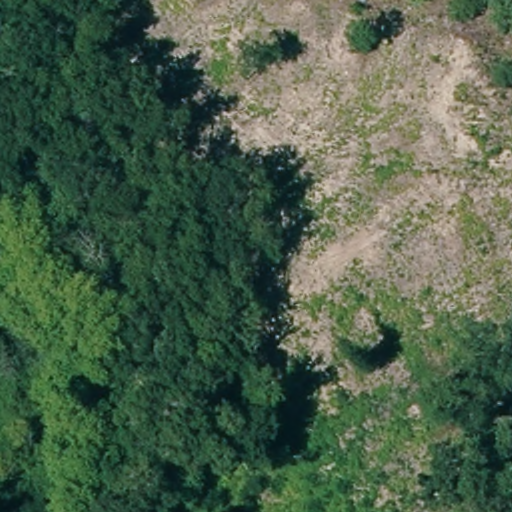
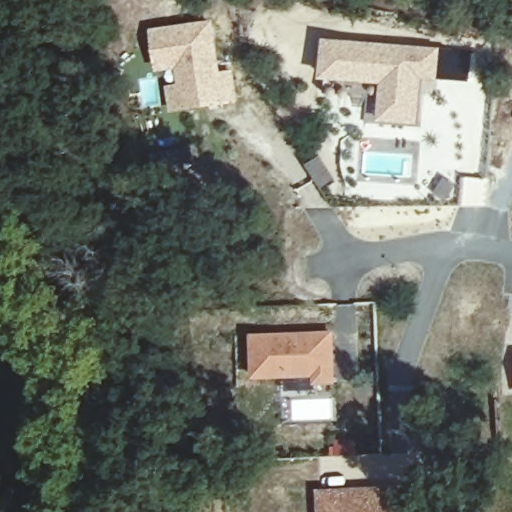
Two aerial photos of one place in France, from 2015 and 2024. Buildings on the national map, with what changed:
new [(216,75),(230,73),(235,99),(185,107),(177,65),(158,67),(152,32),(210,23),(216,75)]
new [(470,48),(468,82),(421,79),(418,125),(378,122),(381,83),(321,79),(323,39),(470,48)]
new [(335,330),(336,384),(312,385),(312,377),(251,380),(250,334),(335,330)]
new [(406,512),(322,512),(320,493),(405,488),(406,512)]

